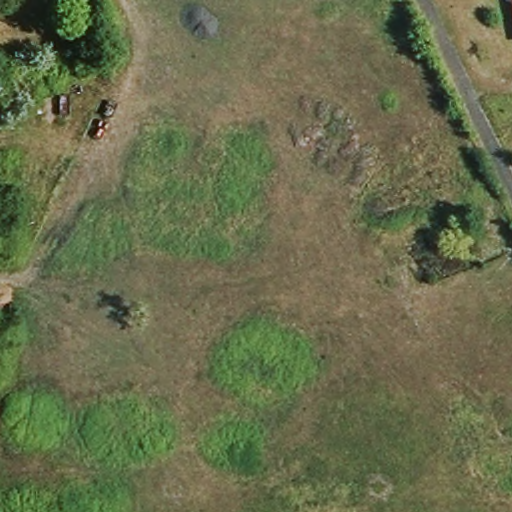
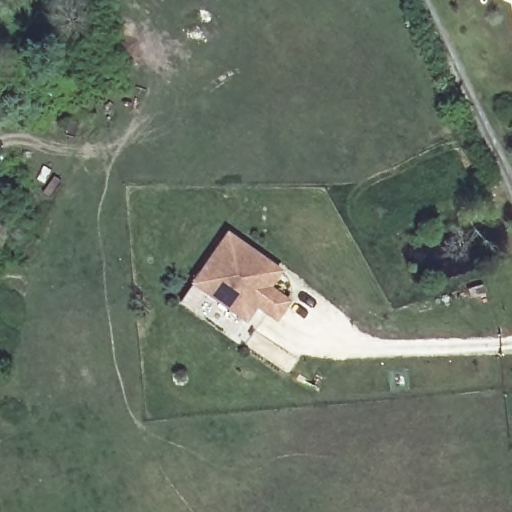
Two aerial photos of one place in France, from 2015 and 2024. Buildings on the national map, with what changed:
new [(226,231),(283,271),(273,288),(291,301),(276,324),(256,310),(246,323),(189,283),(226,231)]

